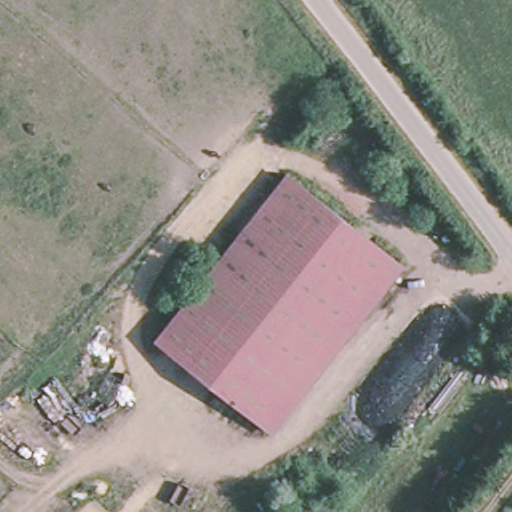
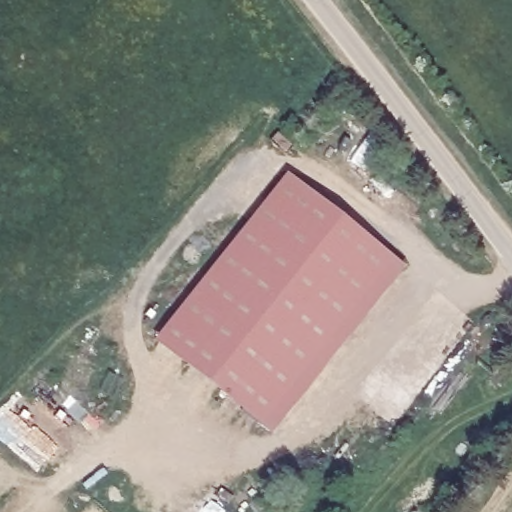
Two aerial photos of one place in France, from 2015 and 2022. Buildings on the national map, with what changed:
unchanged [(275,432),(153,333),(287,163),(407,262),(275,432)]

